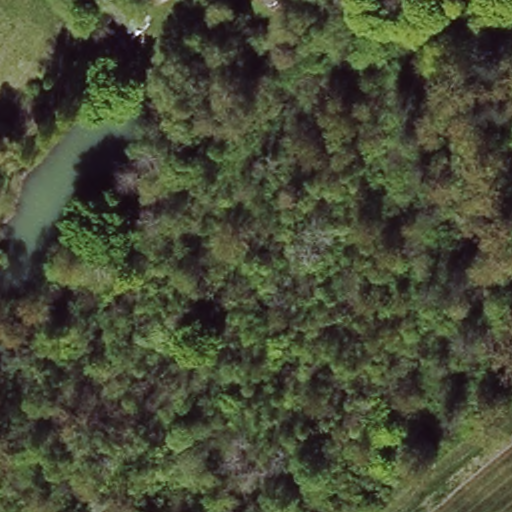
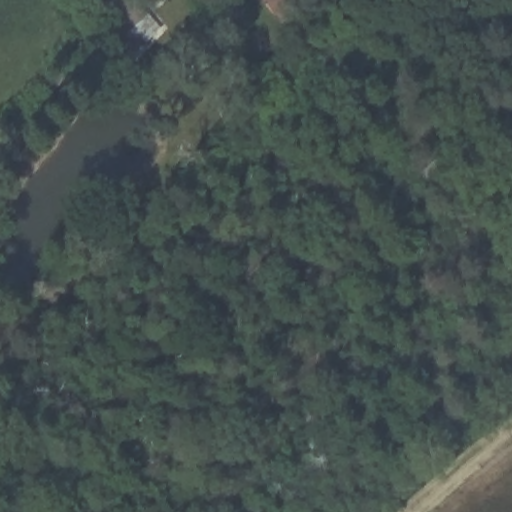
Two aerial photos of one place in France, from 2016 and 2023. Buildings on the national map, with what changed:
unchanged [(262,0),(268,0),(264,3),(262,0)]

